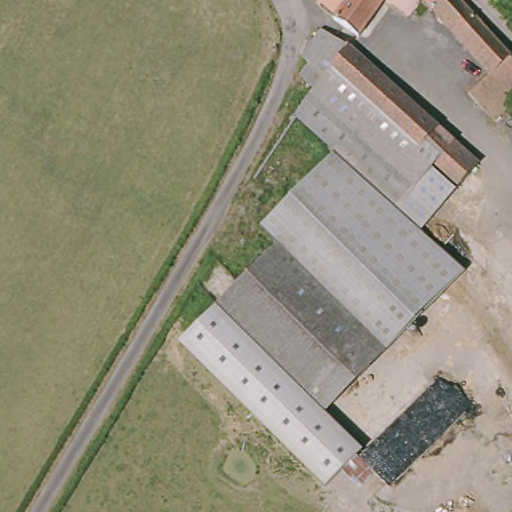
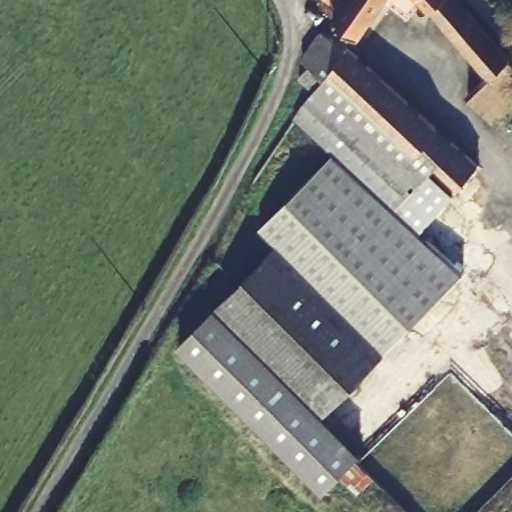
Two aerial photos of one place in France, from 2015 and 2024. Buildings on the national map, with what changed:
unchanged [(386,0),(359,38),(349,30),(332,18),(345,0),(386,0)]
unchanged [(512,54),(507,59),(494,67),(471,40),(429,0),(460,0),(512,54)]
unchanged [(318,79),(298,60),(331,29),(484,165),(423,230),(319,143),(287,113),(318,79)]
unchanged [(507,59),(512,64),(512,107),(494,123),(467,93),(494,67),(507,59)]
unchanged [(319,143),(423,230),(463,262),(401,342),(271,239),(253,224),(259,215),(319,143)]
unchanged [(401,342),(394,351),(351,406),(218,304),(271,239),(401,342)]
unchanged [(351,406),(333,424),(361,454),(356,459),(374,478),(359,492),(341,474),(324,491),(178,344),(218,304),(351,406)]

